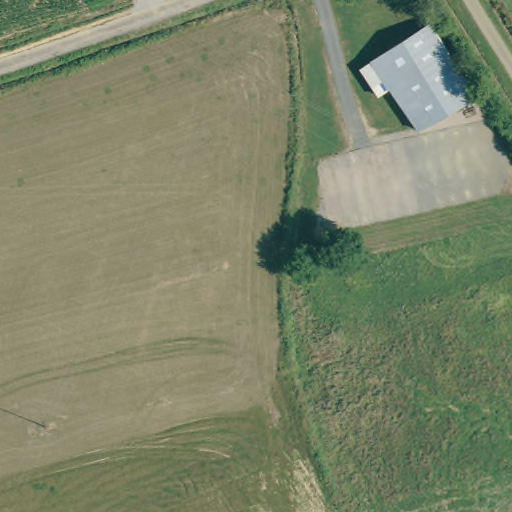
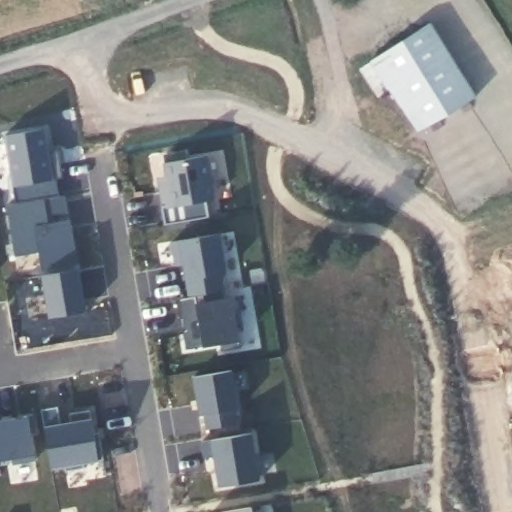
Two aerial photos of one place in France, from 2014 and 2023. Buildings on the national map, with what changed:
unchanged [(476,95),(418,131),(373,58),(431,22),(476,95)]
new [(55,178),(57,195),(44,198),(15,203),(2,137),(45,127),(49,151),(57,149),(62,178),(55,178)]
new [(165,225),(156,177),(166,175),(164,163),(205,155),(212,199),(204,200),(207,216),(165,225)]
new [(15,203),(44,198),(48,222),(69,218),(77,264),(41,271),(39,253),(12,257),(5,205),(15,203)]
new [(225,271),(220,272),(223,290),(190,296),(184,264),(176,265),(172,241),(219,233),(225,271)]
new [(77,268),(85,310),(49,316),(41,274),(77,268)]
new [(205,302),(232,297),(235,310),(240,309),(243,328),(237,330),(240,347),(221,350),(220,343),(185,348),(182,329),(190,328),(187,316),(180,317),(177,298),(204,293),(205,302)]
new [(236,423),(206,428),(204,413),(200,414),(193,376),(231,369),(238,408),(234,409),(236,423)]
new [(87,485),(68,488),(65,466),(51,468),(41,409),(57,407),(61,426),(71,424),(69,413),(90,410),(94,433),(99,432),(106,476),(86,480),(87,485)]
new [(0,461),(0,421),(27,416),(34,455),(0,461)]
new [(251,432),(258,479),(216,486),(208,441),(251,432)]
new [(254,506),(254,512),(222,512),(254,506)]

